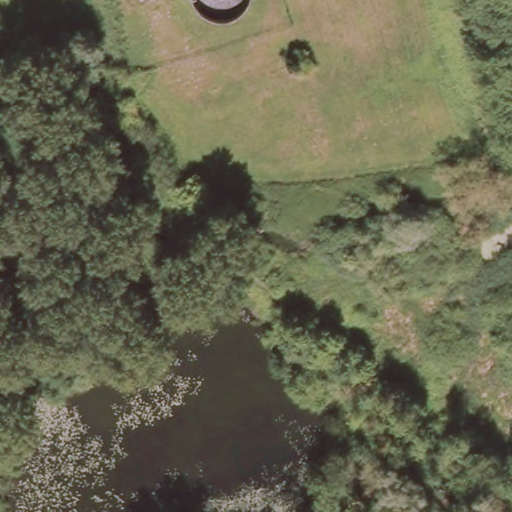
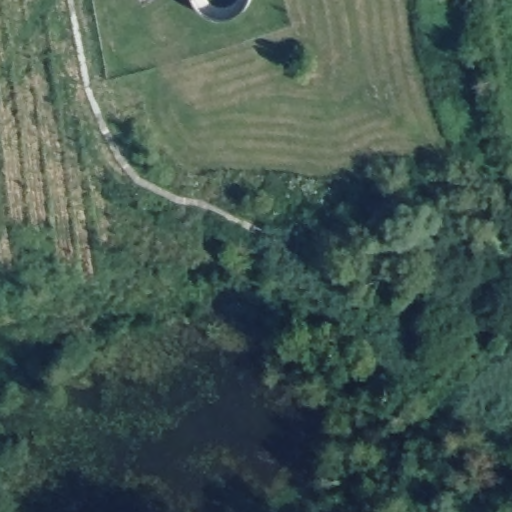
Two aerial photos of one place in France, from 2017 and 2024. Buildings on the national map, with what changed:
[]

